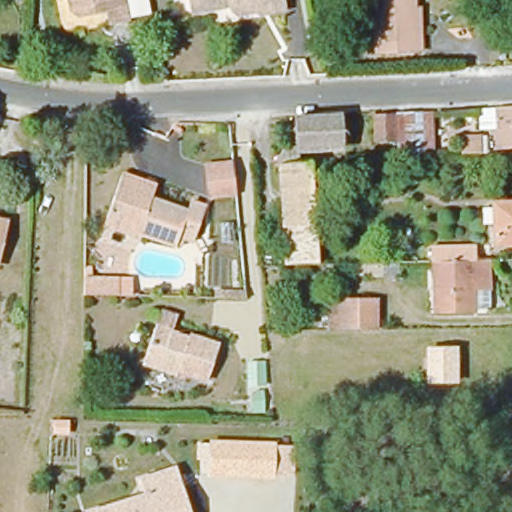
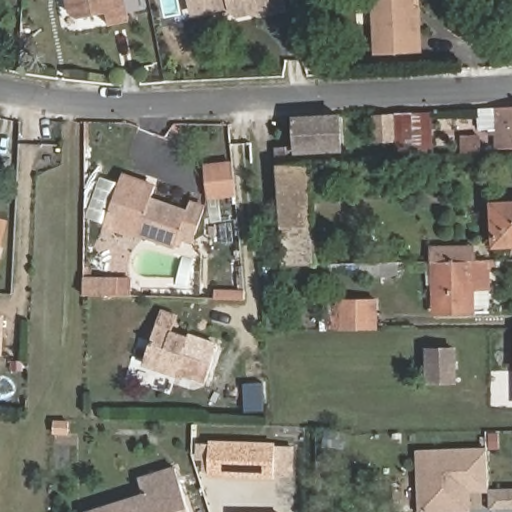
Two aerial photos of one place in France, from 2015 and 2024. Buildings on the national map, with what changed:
unchanged [(130,22),(111,26),(109,13),(80,19),(70,13),(68,0),(126,0),(130,22)]
unchanged [(285,10),(272,13),(271,9),(262,10),(240,15),(234,11),(233,5),(193,13),(190,0),(284,0),(285,10)]
unchanged [(421,33),(422,50),(375,52),(373,0),(415,0),(415,9),(420,8),(421,33)]
unchanged [(495,108),(512,107),(512,147),(496,148),(495,133),(491,133),(491,128),(480,129),(480,109),(495,108)]
unchanged [(431,112),(433,158),(397,159),(396,113),(431,112)]
unchanged [(295,120),(338,117),(341,147),(298,150),(295,120)]
unchanged [(375,117),(392,117),(393,142),(376,143),(375,117)]
unchanged [(285,266),(278,165),(310,163),(316,264),(285,266)]
unchanged [(232,164),(235,195),(207,197),(205,166),(232,164)]
unchanged [(124,177),(192,202),(190,208),(205,213),(194,246),(180,241),(175,255),(135,240),(130,252),(105,242),(109,231),(104,229),(118,193),(124,177)]
unchanged [(512,204),(512,245),(495,246),(493,204),(512,204)]
unchanged [(6,222),(0,250),(0,221),(6,222)]
unchanged [(473,290),(473,311),(436,312),(435,262),(431,262),(431,247),(475,246),(475,261),(488,261),(489,290),(473,290)]
unchanged [(399,263),(400,277),(371,278),(371,264),(399,263)]
unchanged [(127,296),(113,296),(79,295),(79,278),(114,279),(127,279),(127,296)]
unchanged [(242,292),(245,292),(245,299),(244,299),(214,299),(214,291),(242,292)]
unchanged [(341,309),(341,300),(376,299),(376,329),(341,330),(328,330),(328,309),(341,309)]
unchanged [(190,345),(191,341),(219,351),(207,386),(180,376),(178,380),(142,367),(159,320),(163,306),(180,312),(175,326),(171,338),(190,345)]
new [(5,312),(3,355),(0,355),(0,312),(5,312)]
unchanged [(427,349),(454,349),(455,382),(427,382),(427,349)]
unchanged [(245,359),(267,358),(271,425),(221,423),(220,401),(247,399),(245,359)]
unchanged [(55,422),(70,423),(69,433),(54,432),(55,422)]
unchanged [(209,443),(276,445),(275,477),(208,475),(209,443)]
new [(468,491),(469,511),(457,512),(422,512),(420,454),(488,452),(490,491),(468,491)]
unchanged [(140,479),(176,467),(191,512),(91,512),(145,494),(140,479)]
new [(490,491),(512,490),(512,509),(490,510),(490,491)]

